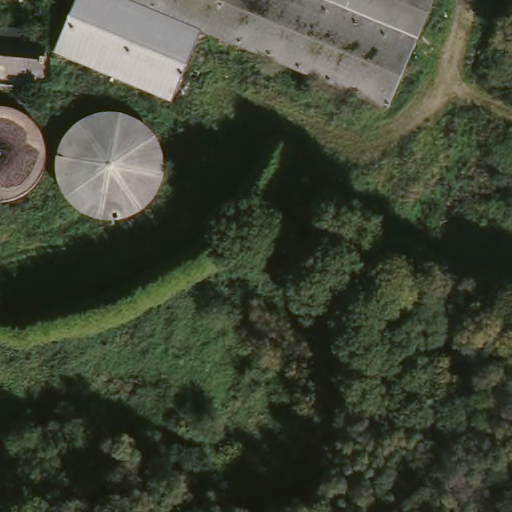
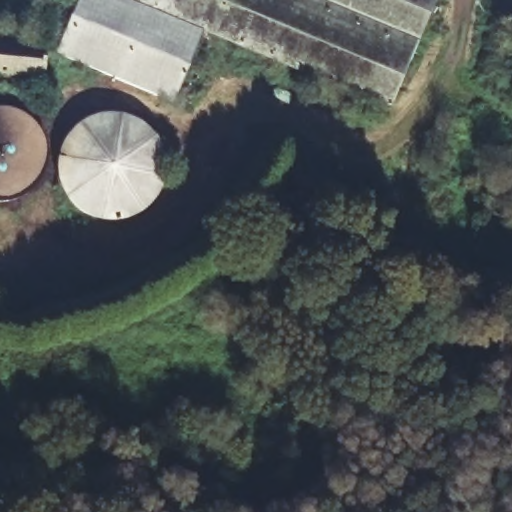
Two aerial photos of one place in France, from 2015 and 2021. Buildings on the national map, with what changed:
unchanged [(171,102),(56,53),(78,0),(133,0),(202,30),(171,102)]
unchanged [(133,0),(440,0),(388,112),(133,0)]
unchanged [(46,41),(43,72),(0,65),(0,34),(46,41)]
unchanged [(160,190),(151,207),(136,217),(113,220),(97,219),(80,212),(66,199),(56,173),(61,149),(73,129),(91,118),(114,114),(131,119),(148,128),(159,141),(166,163),(160,190)]

